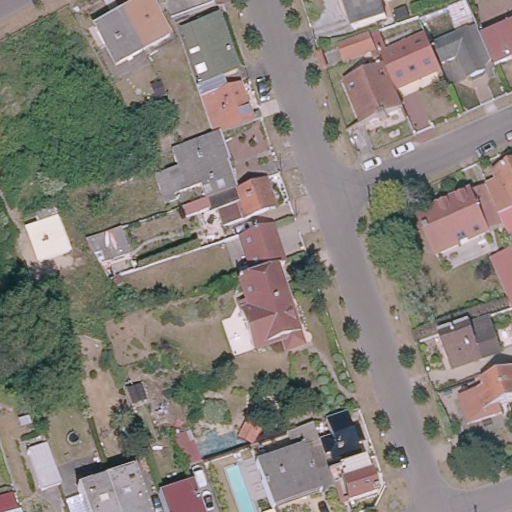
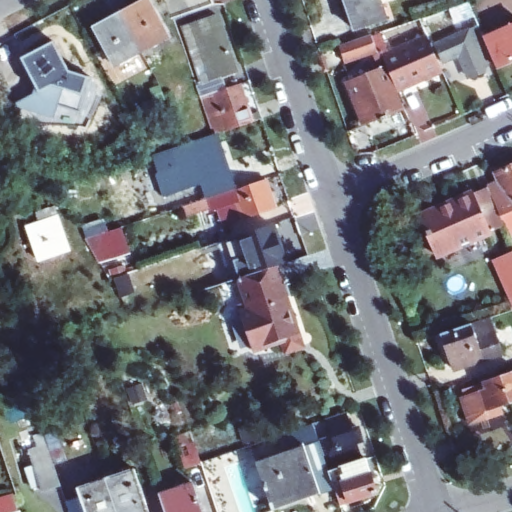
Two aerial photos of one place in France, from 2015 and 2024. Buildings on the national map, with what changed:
unchanged [(139,0),(150,0),(166,33),(138,46),(120,10),(139,0)]
unchanged [(182,21),(180,21),(173,0),(216,0),(219,9),(182,21)]
unchanged [(357,23),(349,0),(385,0),(390,12),(357,23)]
unchanged [(138,46),(112,60),(92,24),(120,10),(138,46)]
unchanged [(213,15),(233,71),(207,80),(202,65),(194,67),(180,26),(213,15)]
unchanged [(483,30),(512,18),(512,55),(497,61),(494,54),(483,30)]
unchanged [(483,58),(486,65),(470,71),(462,54),(445,61),(436,40),(479,20),(483,30),(494,54),(483,58)]
unchanged [(384,49),(382,50),(380,45),(345,56),(340,39),(372,28),(379,44),(385,41),(388,46),(428,30),(443,65),(399,84),(384,49)]
new [(60,105),(53,120),(17,105),(18,101),(23,104),(25,97),(30,99),(35,90),(23,57),(51,41),(78,75),(95,81),(82,114),(60,105)]
unchanged [(366,121),(346,76),(386,59),(406,106),(366,121)]
unchanged [(242,77),(255,116),(220,126),(213,105),(208,106),(203,90),(242,77)]
unchanged [(207,192),(202,176),(173,185),(175,193),(167,196),(157,168),(180,161),(174,142),(185,139),(216,128),(220,126),(223,133),(218,134),(234,183),(207,192)]
unchanged [(502,225),(495,209),(491,200),(487,190),(498,186),(495,176),(512,168),(512,238),(508,240),(502,225)]
unchanged [(234,183),(267,172),(272,185),(277,183),(280,192),(275,194),(277,200),(224,217),(219,202),(211,205),(210,200),(185,208),(183,200),(207,192),(234,183)]
unchanged [(485,185),(487,190),(491,200),(495,209),(502,225),(470,238),(454,198),(485,185)]
unchanged [(433,253),(422,227),(426,225),(420,212),(454,198),(470,238),(433,253)]
unchanged [(52,213),(69,247),(40,261),(32,244),(36,242),(27,225),(52,213)]
unchanged [(278,265),(255,272),(243,233),(275,223),(287,262),(278,265)]
unchanged [(117,231),(122,247),(97,256),(92,240),(117,231)]
unchanged [(512,262),(512,293),(502,266),(512,262)]
unchanged [(255,272),(278,265),(290,302),(294,304),(300,322),(297,326),(303,344),(289,349),(285,338),(255,348),(243,313),(240,302),(249,299),(242,277),(255,272)]
unchanged [(153,279),(157,291),(133,299),(130,287),(153,279)]
unchanged [(489,357),(439,373),(427,338),(477,321),(489,357)]
unchanged [(492,411),(477,416),(468,390),(483,386),(494,383),(492,376),(508,371),(512,370),(512,398),(507,400),(510,406),(492,411)]
unchanged [(325,466),(322,455),(318,456),(312,441),(324,437),(318,420),(337,414),(342,429),(350,426),(354,441),(347,444),(352,458),(325,466)]
unchanged [(367,490),(340,499),(335,482),(342,479),(340,471),(327,476),(328,477),(323,479),(327,488),(312,492),(265,508),(250,461),(285,449),(279,431),(304,423),(320,471),(321,472),(358,460),(367,490)]
unchanged [(208,465),(208,467),(192,472),(182,441),(198,435),(208,465)]
unchanged [(65,488),(47,494),(32,454),(51,447),(65,488)]
unchanged [(107,468),(137,458),(154,512),(121,512),(107,468)]
unchanged [(121,512),(86,512),(75,479),(107,468),(121,512)]
unchanged [(190,482),(199,512),(162,512),(156,493),(190,482)]
unchanged [(17,498),(22,512),(0,512),(0,503),(17,498)]

